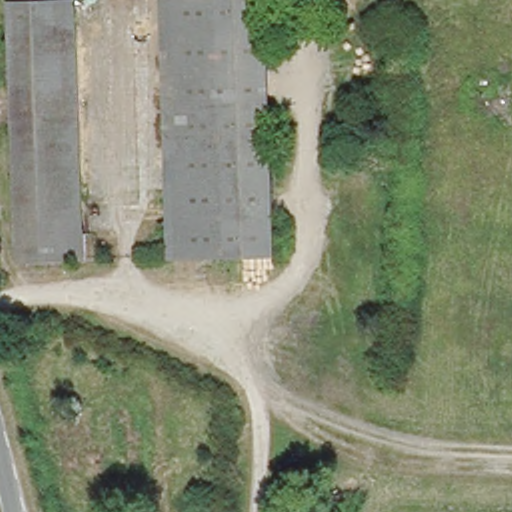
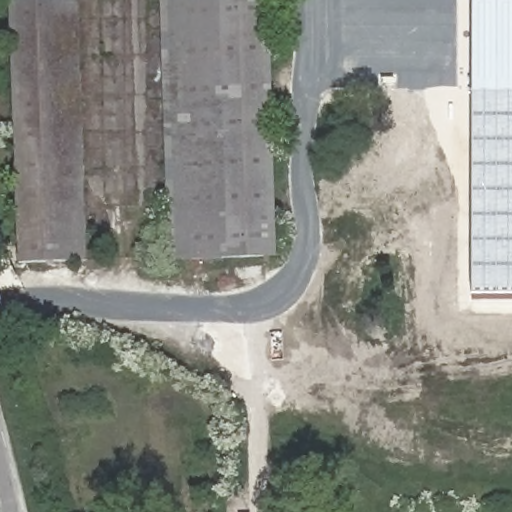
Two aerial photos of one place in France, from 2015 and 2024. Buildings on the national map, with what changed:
unchanged [(11,3),(79,0),(87,258),(21,260),(11,3)]
unchanged [(277,254),(172,256),(162,0),(270,0),(277,254)]
new [(471,0),(512,0),(512,294),(472,293),(471,0)]

